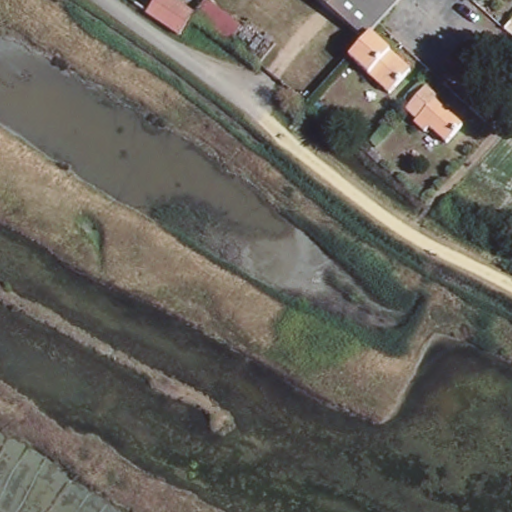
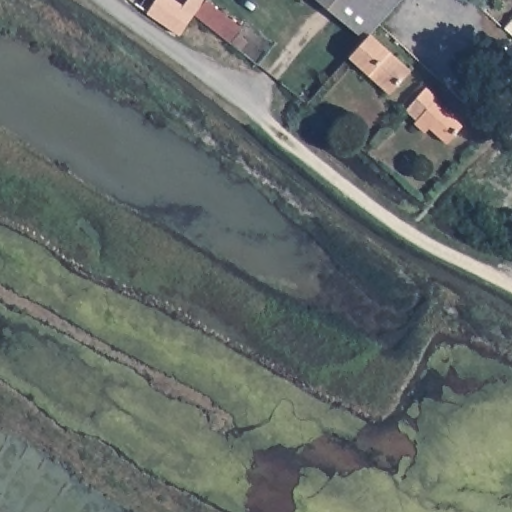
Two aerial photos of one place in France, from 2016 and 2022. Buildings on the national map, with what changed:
unchanged [(181,40),(151,17),(166,0),(182,0),(203,16),(181,40)]
unchanged [(372,34),(366,41),(365,41),(314,0),(403,0),(382,23),(372,34)]
unchanged [(411,70),(390,94),(350,58),(365,41),(366,41),(372,34),(411,70)]
unchanged [(465,124),(450,141),(433,126),(428,132),(418,123),(421,120),(411,110),(430,88),(441,98),(438,101),(465,124)]

